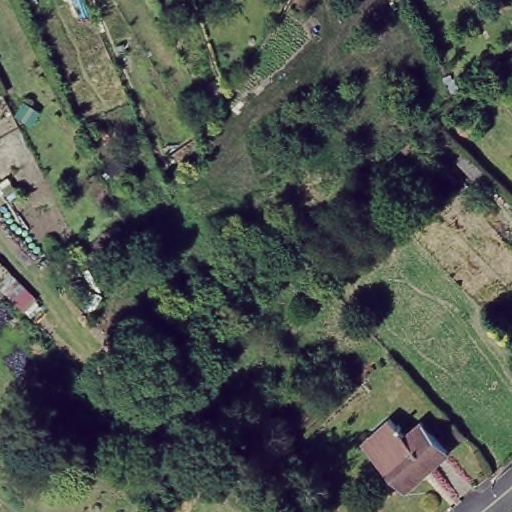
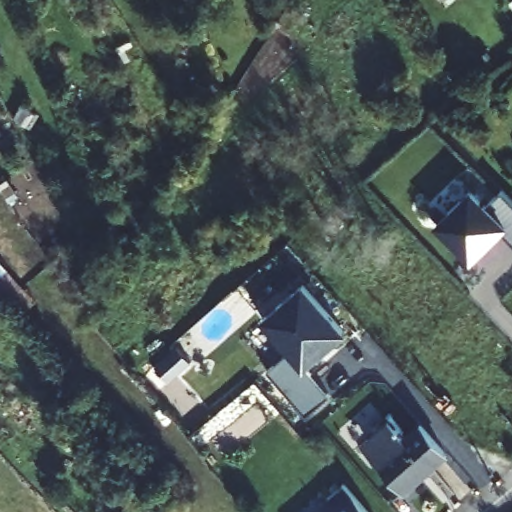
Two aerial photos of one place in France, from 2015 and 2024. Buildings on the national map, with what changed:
new [(491,199),(503,187),(512,196),(512,235),(502,225),(475,255),(440,221),(475,182),(491,199)]
new [(304,282),(346,331),(304,367),(327,395),(306,413),(270,371),(290,352),(262,318),(304,282)]
unchanged [(402,492),(357,439),(385,416),(402,432),(423,422),(448,451),(402,492)]
new [(370,512),(321,512),(335,501),(329,495),(345,482),(370,512)]

